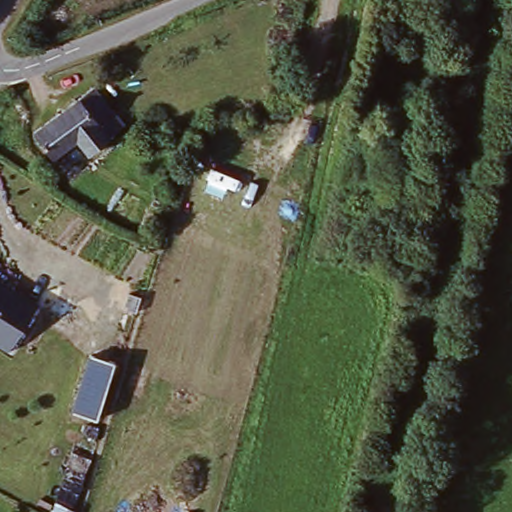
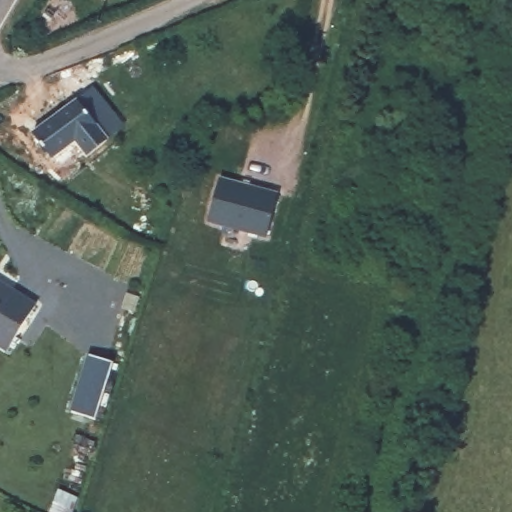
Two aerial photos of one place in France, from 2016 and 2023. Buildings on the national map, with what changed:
unchanged [(124,120),(87,152),(78,141),(58,158),(34,133),(44,124),(93,84),(124,120)]
new [(221,179),(279,195),(267,237),(209,221),(221,179)]
unchanged [(8,352),(0,347),(0,284),(36,304),(8,352)]
unchanged [(97,418),(72,410),(89,355),(116,364),(97,418)]

